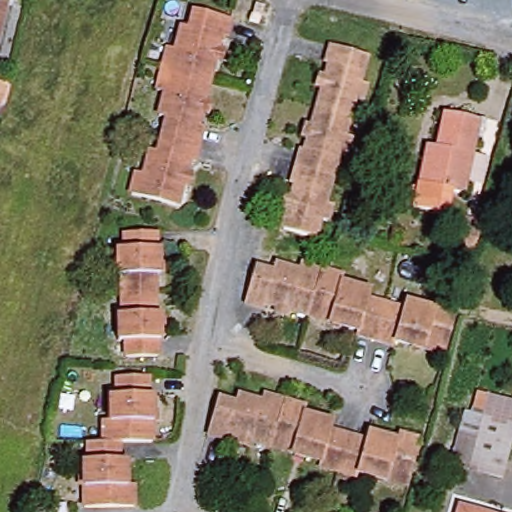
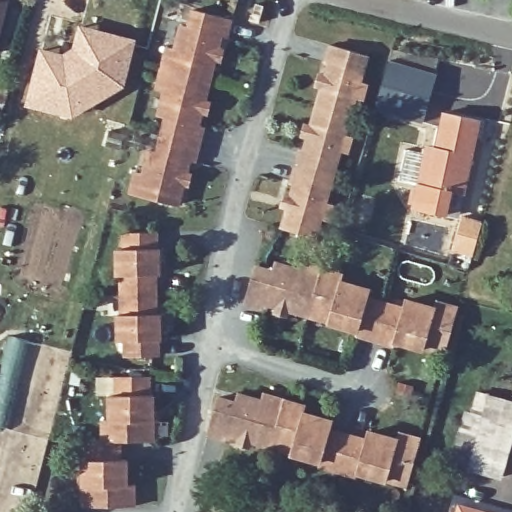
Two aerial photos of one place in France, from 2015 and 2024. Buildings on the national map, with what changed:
unchanged [(0,0),(7,0),(0,26),(0,0)]
unchanged [(255,20),(259,8),(268,10),(264,22),(255,20)]
unchanged [(189,184),(182,182),(179,181),(172,204),(131,192),(137,171),(143,173),(150,149),(157,150),(166,118),(159,116),(166,91),(157,88),(169,47),(176,49),(184,23),(191,25),(196,9),(232,18),(227,34),(223,33),(219,47),(225,49),(222,62),(216,60),(212,59),(201,100),(205,101),(211,103),(207,115),(202,112),(198,125),(203,126),(194,159),(189,158),(186,171),(192,172),(189,184)]
new [(39,47),(61,51),(69,48),(71,44),(78,22),(137,38),(124,87),(84,110),(72,119),(57,113),(22,104),(39,47)]
unchanged [(297,195),(300,183),(294,182),(304,148),(310,150),(314,136),(308,134),(311,124),(317,126),(320,125),(330,91),(327,88),(322,86),(325,75),(331,77),(333,70),(327,68),(335,43),(364,52),(370,55),(362,80),(370,82),(365,98),(358,96),(347,133),(355,135),(351,150),(342,147),(327,200),(335,202),(330,219),(322,217),(317,235),(291,227),(297,209),(293,208),(286,206),(290,193),(297,195)]
new [(386,60),(434,74),(420,122),(372,108),(386,60)]
unchanged [(5,108),(0,107),(0,84),(10,87),(5,108)]
unchanged [(440,147),(451,114),(485,123),(486,120),(493,123),(487,141),(480,141),(464,194),(451,191),(444,214),(412,205),(420,181),(431,145),(440,147)]
unchanged [(483,225),(474,260),(454,254),(463,220),(483,225)]
unchanged [(127,292),(126,274),(121,273),(121,247),(125,247),(125,231),(156,231),(156,247),(159,247),(159,272),(153,273),(154,312),(161,312),(160,337),(158,339),(158,352),(128,353),(127,339),(123,339),(122,313),(127,312),(127,292)]
unchanged [(274,315),(276,309),(264,305),(263,310),(244,304),(254,270),(272,275),(274,268),(297,275),(300,266),(341,279),(339,287),(367,296),(365,304),(400,314),(403,307),(432,315),(434,307),(455,313),(443,355),(424,349),(423,353),(394,344),(393,349),(356,339),(357,333),(328,324),(329,320),(288,308),(287,313),(285,319),(274,315)]
unchanged [(104,422),(111,422),(111,395),(117,395),(116,374),(149,373),(150,392),(154,392),(155,418),(151,417),(151,437),(120,438),(105,438),(104,422)]
unchanged [(225,431),(223,436),(207,431),(218,395),(234,400),(236,393),(261,400),(264,393),(303,405),(303,412),(333,422),(330,429),(364,439),(367,432),(397,441),(399,434),(418,439),(405,481),(387,475),(385,479),(356,470),(354,476),(318,465),(319,459),(291,451),(293,446),(251,434),(249,438),(247,445),(236,442),(238,435),(225,431)]
unchanged [(512,417),(512,427),(500,467),(469,458),(484,409),(512,417)]
unchanged [(121,456),(128,456),(129,479),(134,484),(135,502),(88,503),(87,481),(82,481),(82,457),(89,457),(89,439),(105,438),(120,438),(121,456)]
unchanged [(464,506),(484,512),(462,512),(464,506)]

